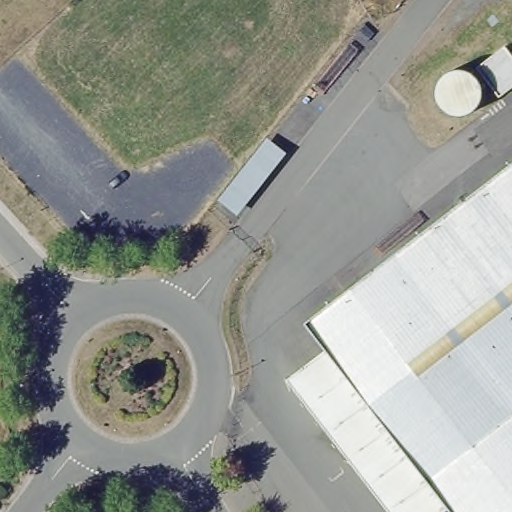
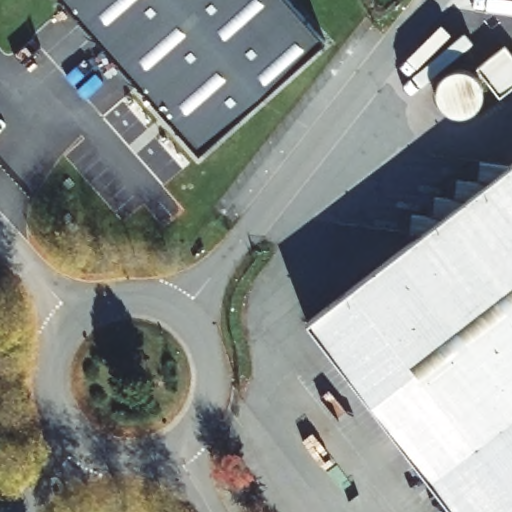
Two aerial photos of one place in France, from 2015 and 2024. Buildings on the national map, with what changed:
new [(325,40),(198,154),(59,0),(289,0),(325,40)]
unchanged [(512,57),(512,87),(499,97),(476,67),(504,46),(512,57)]
demolished [(218,199),(267,138),(286,154),(237,214),(218,199)]
unchanged [(512,160),(512,512),(456,512),(308,324),(512,160)]

